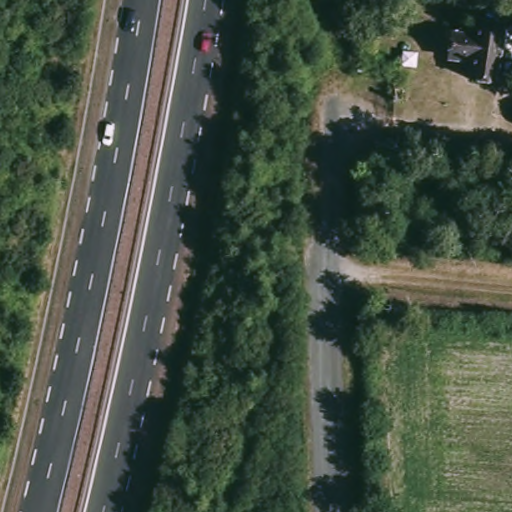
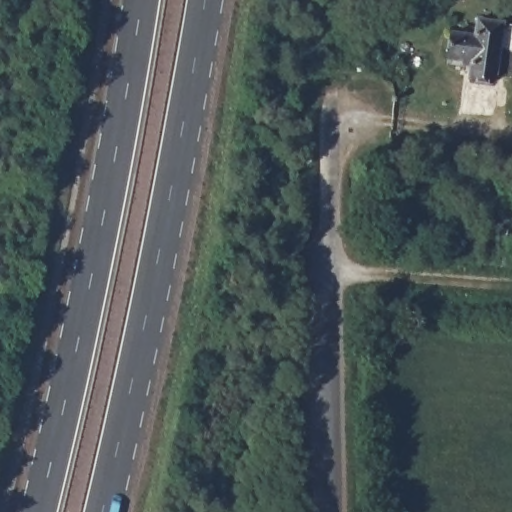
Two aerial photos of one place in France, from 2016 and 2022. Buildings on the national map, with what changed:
unchanged [(473,21),(498,25),(490,82),(465,79),(468,61),(444,59),(448,33),(471,36),(473,21)]

